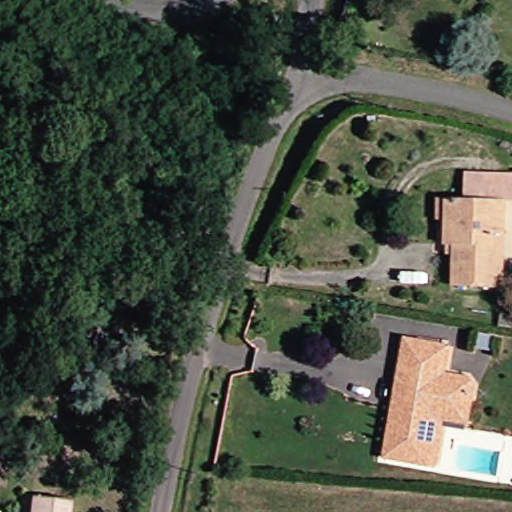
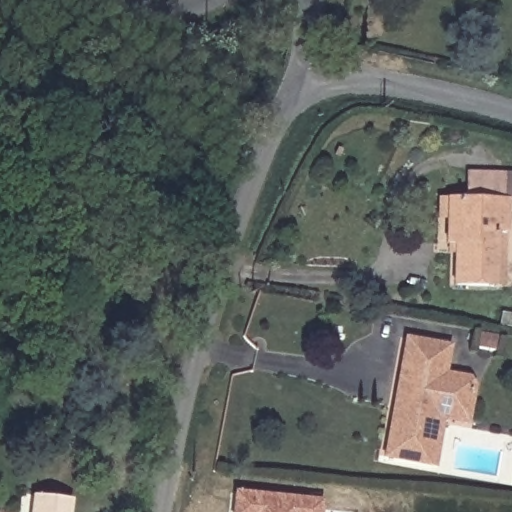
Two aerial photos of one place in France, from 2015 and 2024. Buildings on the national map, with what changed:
unchanged [(451,253),(444,253),(445,244),(442,244),(443,218),(435,218),(435,198),(443,198),(462,199),(462,174),(498,174),(512,174),(512,199),(501,199),(500,235),(499,288),(490,288),(450,286),(451,253)]
unchanged [(497,336),(495,351),(475,348),(478,332),(497,336)]
unchanged [(438,418),(430,465),(424,464),(380,457),(391,391),(400,338),(404,338),(444,345),(440,373),(463,377),(469,385),(465,407),(463,422),(438,418)]
new [(230,512),(232,490),(321,500),(320,512),(230,512)]
unchanged [(65,499),(64,512),(24,512),(26,495),(65,499)]

